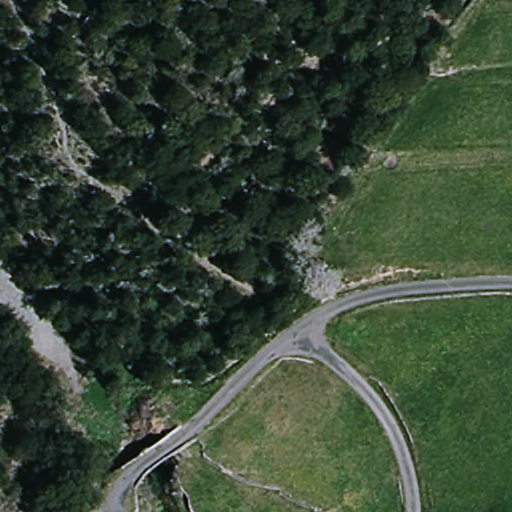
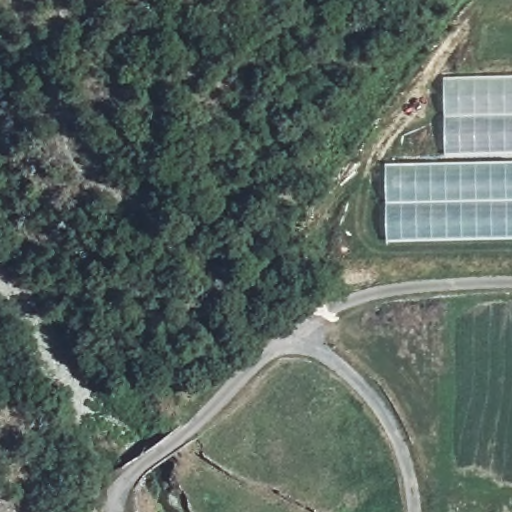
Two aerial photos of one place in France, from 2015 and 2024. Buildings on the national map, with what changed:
new [(446,153),(444,77),(512,76),(512,151),(446,153)]
new [(388,241),(386,163),(512,161),(512,238),(388,241)]

